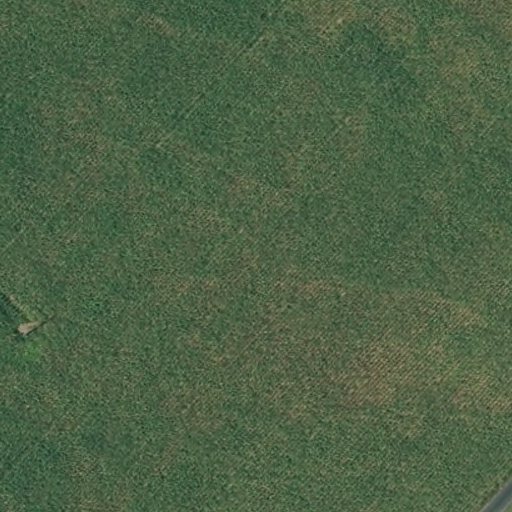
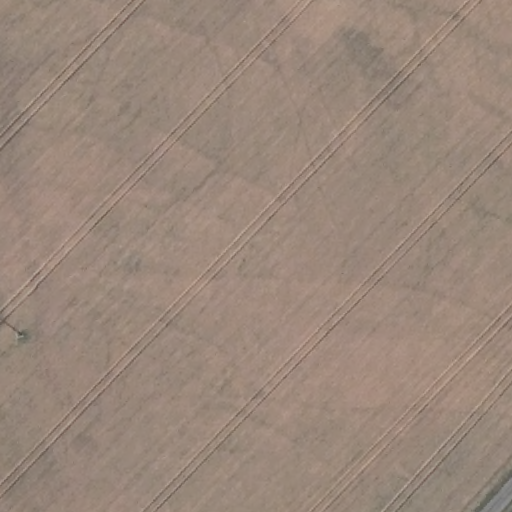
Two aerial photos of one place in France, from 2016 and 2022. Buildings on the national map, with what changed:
[]

